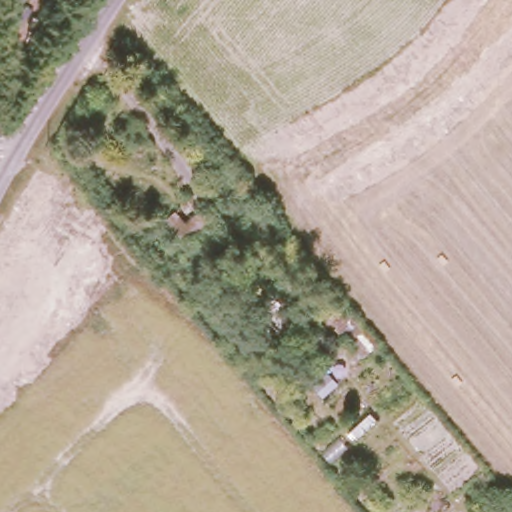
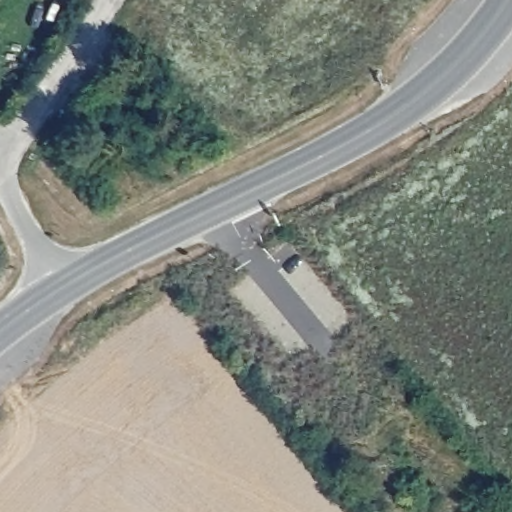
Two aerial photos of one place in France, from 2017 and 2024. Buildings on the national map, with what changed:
unchanged [(276,332),(251,301),(276,281),(300,312),(276,332)]

